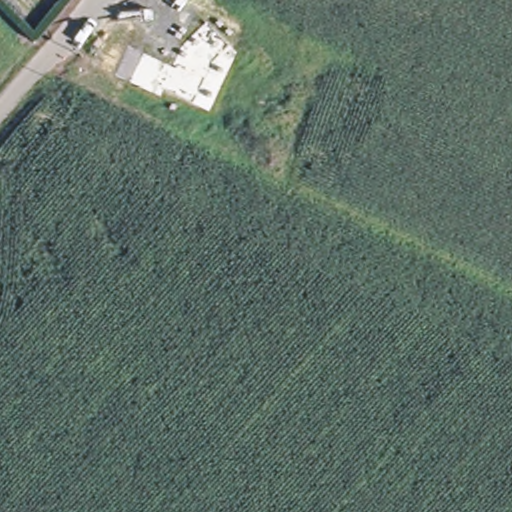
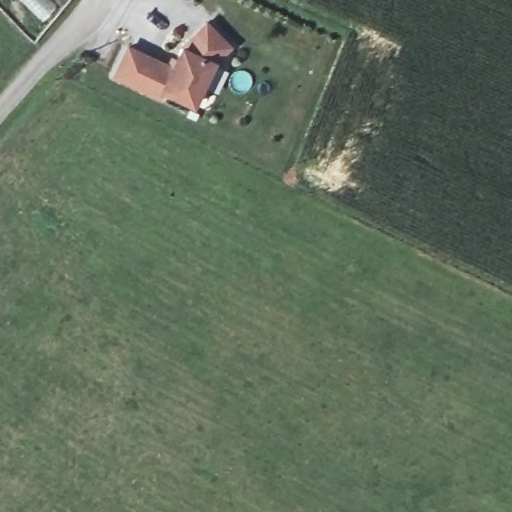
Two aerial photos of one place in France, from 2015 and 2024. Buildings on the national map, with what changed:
new [(125,40),(167,63),(179,42),(204,20),(226,45),(208,60),(187,100),(157,85),(153,91),(110,68),(125,40)]

